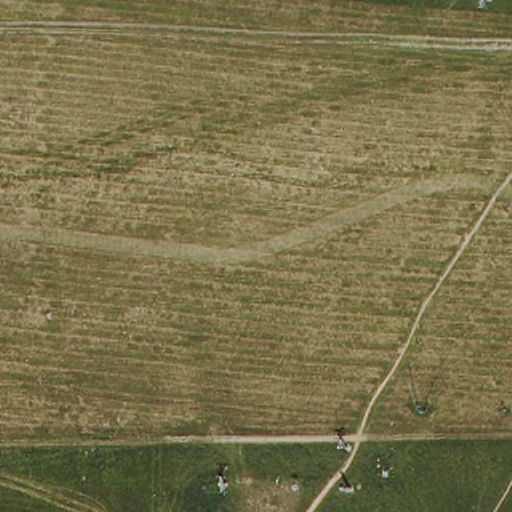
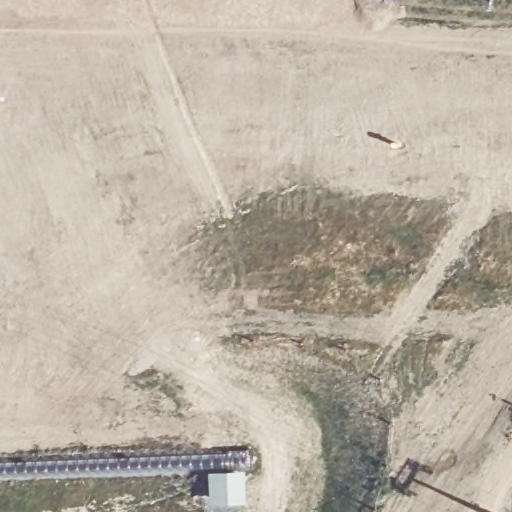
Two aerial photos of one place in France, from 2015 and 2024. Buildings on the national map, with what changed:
new [(245,470),(246,504),(209,506),(207,471),(245,470)]

